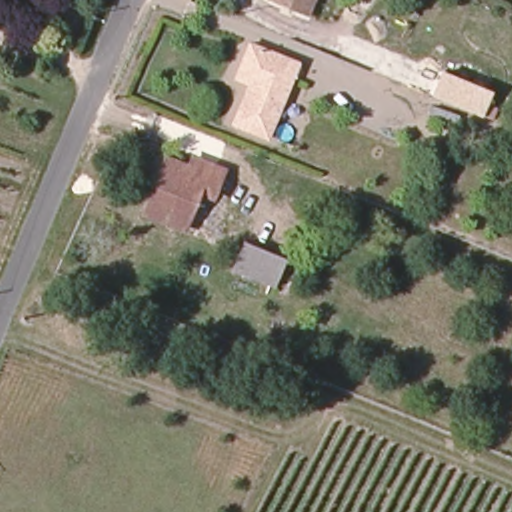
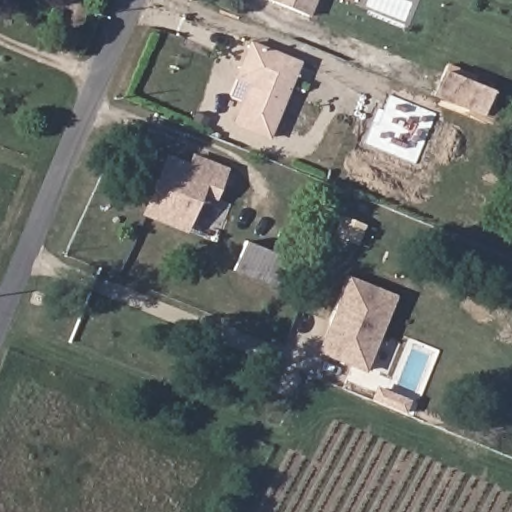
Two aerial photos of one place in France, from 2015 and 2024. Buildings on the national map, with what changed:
unchanged [(308,15),(267,0),(314,0),(308,15)]
unchanged [(300,65),(267,140),(233,128),(251,85),(238,79),(253,45),(300,65)]
new [(444,73),(495,94),(486,117),(435,96),(444,73)]
unchanged [(203,201),(191,199),(178,231),(138,216),(161,165),(180,173),(185,162),(204,171),(216,177),(203,201)]
unchanged [(285,257),(271,286),(231,268),(243,241),(285,257)]
new [(323,340),(331,343),(337,329),(329,325),(349,277),(395,296),(365,371),(318,352),(323,340)]

